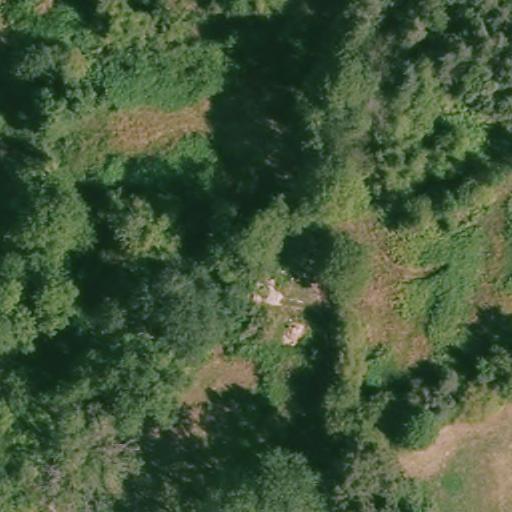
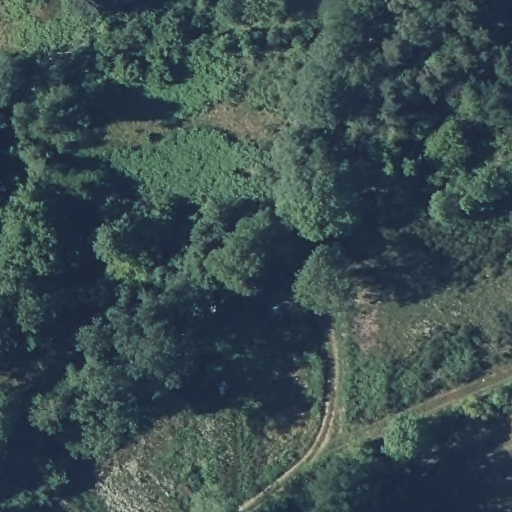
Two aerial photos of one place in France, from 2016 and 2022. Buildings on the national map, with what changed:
[]

